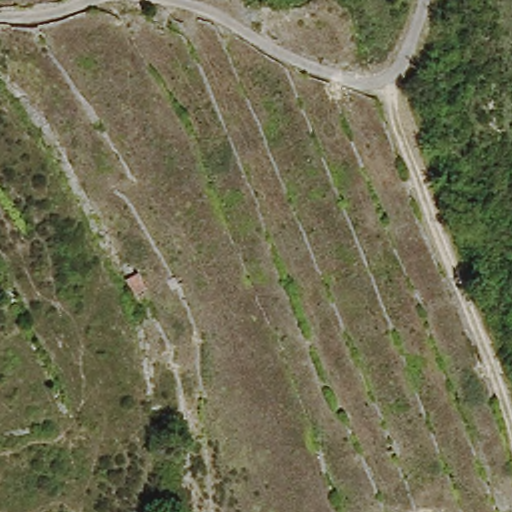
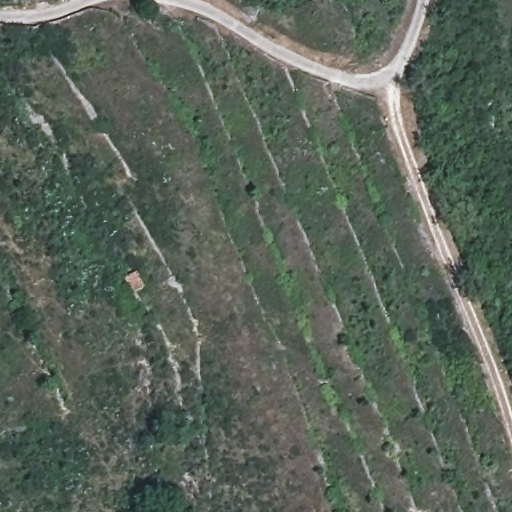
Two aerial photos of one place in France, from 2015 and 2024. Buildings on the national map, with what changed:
unchanged [(137,270),(148,288),(134,296),(124,277),(137,270)]

